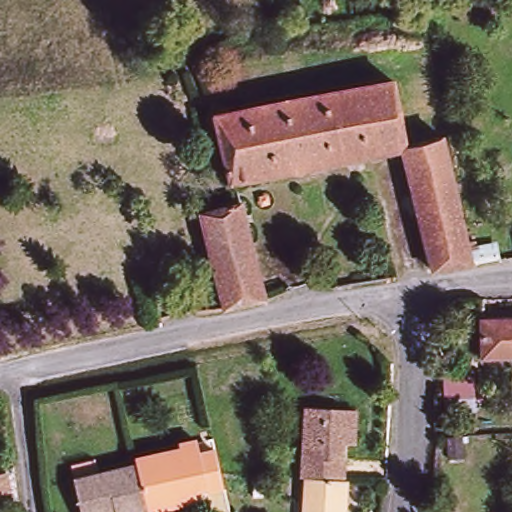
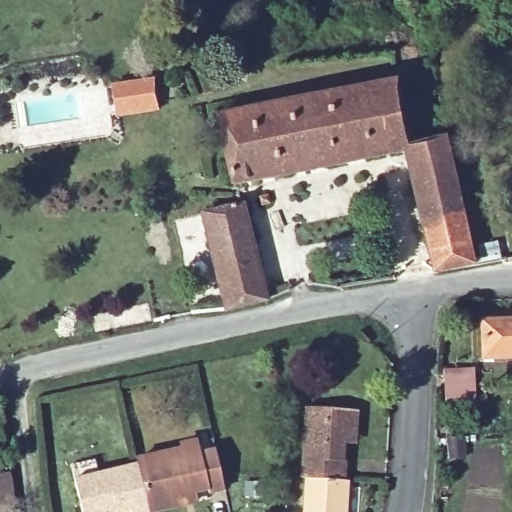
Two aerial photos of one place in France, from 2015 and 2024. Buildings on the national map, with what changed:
new [(155,79),(158,95),(160,109),(119,114),(114,85),(133,83),(155,79)]
unchanged [(408,159),(373,166),(361,100),(399,93),(407,122),(413,152),(448,146),(467,234),(476,276),(438,282),(408,159)]
unchanged [(361,100),(373,166),(236,192),(222,127),(361,100)]
unchanged [(442,116),(447,141),(448,146),(413,152),(407,122),(442,116)]
unchanged [(228,313),(207,217),(243,209),(270,305),(228,313)]
unchanged [(485,326),(512,325),(512,362),(486,363),(485,326)]
unchanged [(445,383),(473,382),(474,391),(475,401),(446,402),(445,383)]
unchanged [(310,414),(357,415),(356,438),(346,437),(345,448),(343,469),(346,469),(346,486),(307,485),(310,414)]
unchanged [(137,464),(197,451),(196,447),(213,444),(223,489),(224,495),(205,499),(204,493),(177,498),(179,510),(169,512),(148,512),(138,469),(137,464)]
unchanged [(99,461),(103,477),(138,469),(148,512),(81,512),(71,468),(99,461)]
unchanged [(346,486),(349,486),(348,512),(306,512),(307,485),(346,486)]
unchanged [(456,500),(444,500),(443,487),(455,487),(456,500)]

